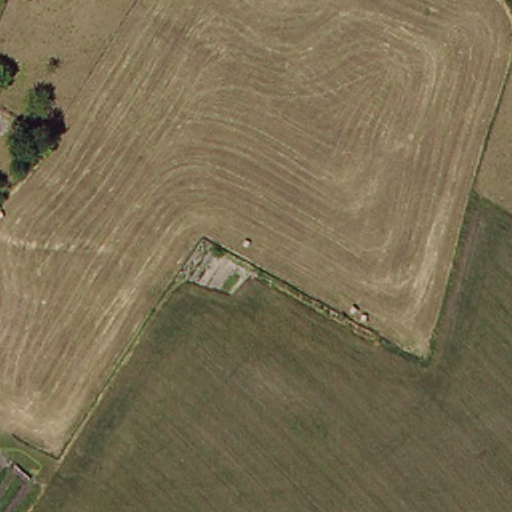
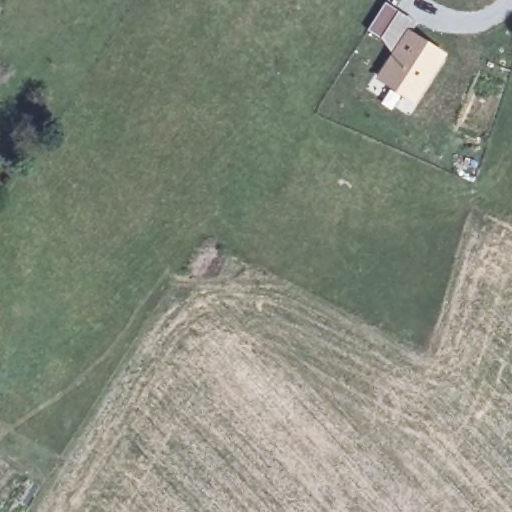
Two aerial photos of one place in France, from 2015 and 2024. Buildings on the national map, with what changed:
new [(384,0),(411,19),(406,26),(392,48),(365,28),(384,0)]
new [(392,48),(406,26),(447,53),(415,105),(400,96),(391,109),(381,103),(390,88),(374,77),(392,48)]

